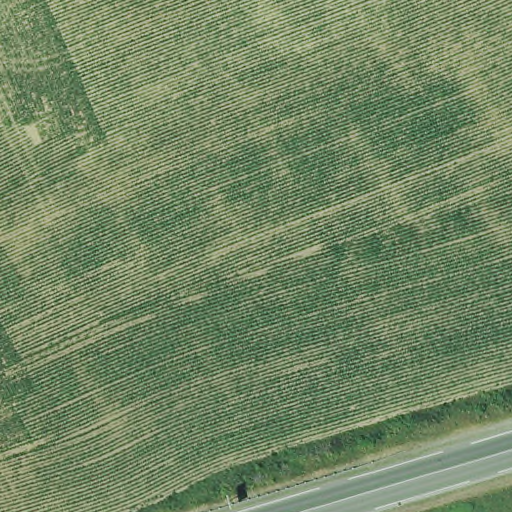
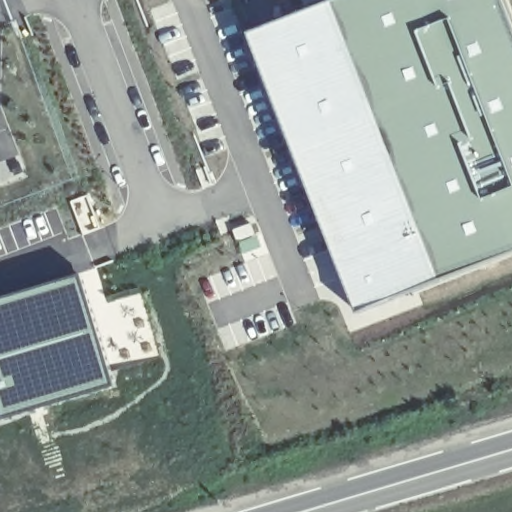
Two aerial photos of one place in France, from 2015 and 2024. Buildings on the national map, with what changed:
new [(238,39),(342,0),(512,0),(512,282),(353,335),(238,39)]
new [(79,272),(96,319),(114,385),(63,402),(1,416),(0,410),(0,297),(79,272)]

